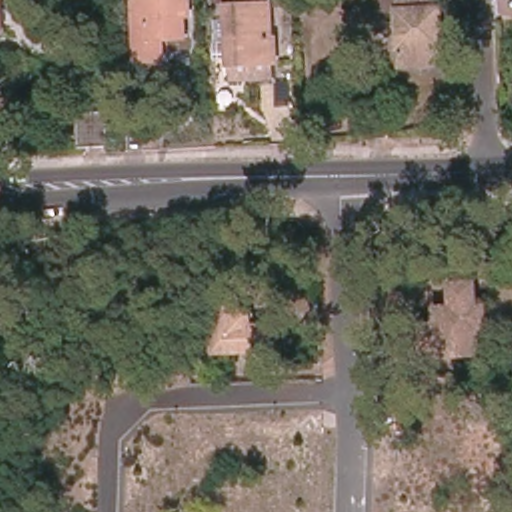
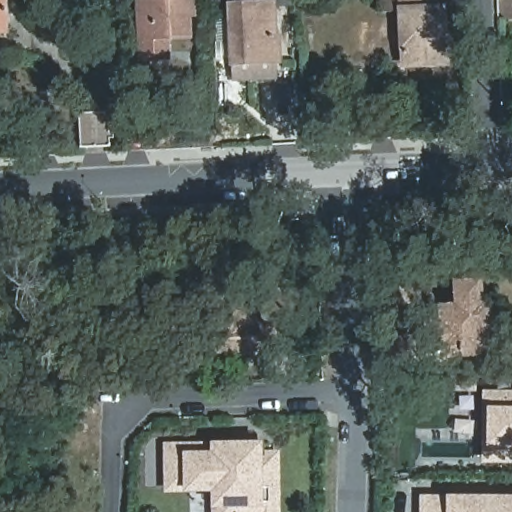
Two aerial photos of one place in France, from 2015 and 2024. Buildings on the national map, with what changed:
unchanged [(3,0),(4,27),(0,28),(0,0),(3,0)]
unchanged [(187,0),(188,17),(182,17),(183,40),(160,41),(161,60),(139,62),(136,1),(156,0),(187,0)]
unchanged [(232,60),(229,2),(272,0),(274,52),(275,75),(255,76),(232,77),(232,60)]
unchanged [(406,76),(402,24),(382,25),(381,0),(401,0),(402,9),(420,8),(419,2),(442,0),(446,57),(446,73),(435,74),(406,76)]
unchanged [(80,115),(110,114),(112,149),(81,150),(80,115)]
unchanged [(480,278),(481,301),(490,301),(491,326),(482,326),(484,354),(448,355),(447,338),(422,339),(422,320),(440,319),(439,302),(455,302),(453,279),(480,278)]
unchanged [(241,301),(242,312),(257,311),(257,326),(273,325),(275,346),(222,349),(219,303),(241,301)]
unchanged [(152,342),(152,361),(123,363),(122,343),(152,342)]
new [(512,398),(512,461),(488,460),(490,398),(512,398)]
new [(212,508),(212,491),(186,492),(166,493),(166,442),(212,442),(264,440),(263,450),(282,450),(282,512),(212,512),(212,508)]
new [(421,495),(448,495),(512,495),(512,512),(421,512),(421,495)]

